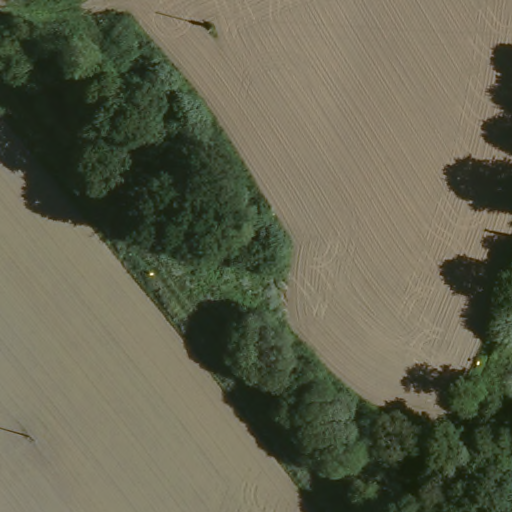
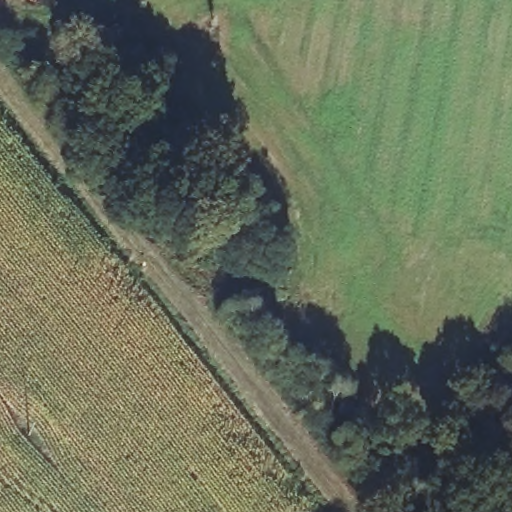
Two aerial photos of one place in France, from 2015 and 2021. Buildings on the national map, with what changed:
[]

